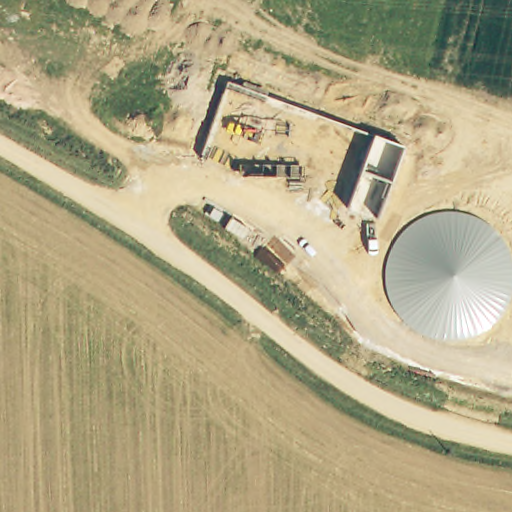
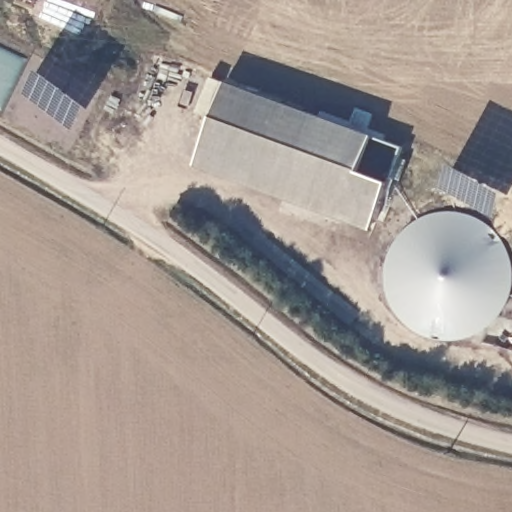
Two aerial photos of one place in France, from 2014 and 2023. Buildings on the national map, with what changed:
new [(373,230),(197,166),(227,82),(321,116),(322,110),(352,122),(357,108),(373,115),(368,127),(387,134),(385,141),(403,148),(398,158),(408,160),(400,180),(392,177),(391,183),(373,230)]

